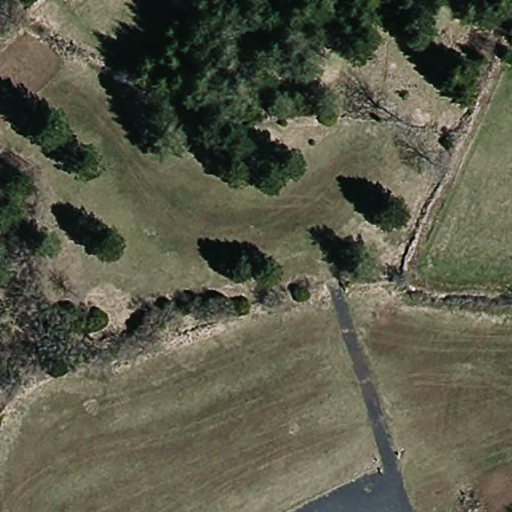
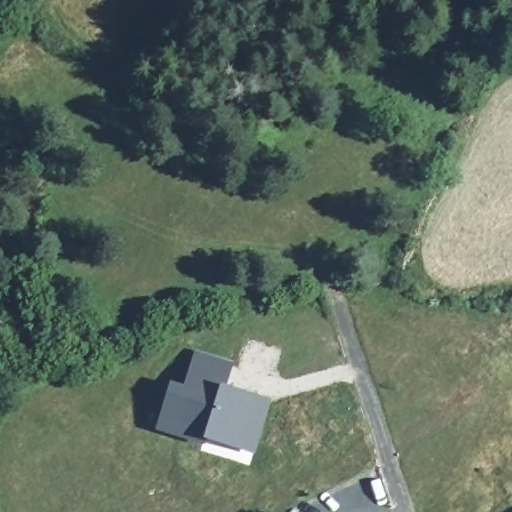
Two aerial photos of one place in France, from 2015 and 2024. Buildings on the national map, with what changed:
new [(234,363),(227,386),(272,400),(255,455),(208,440),(205,445),(155,431),(170,381),(184,385),(195,350),(234,363)]

